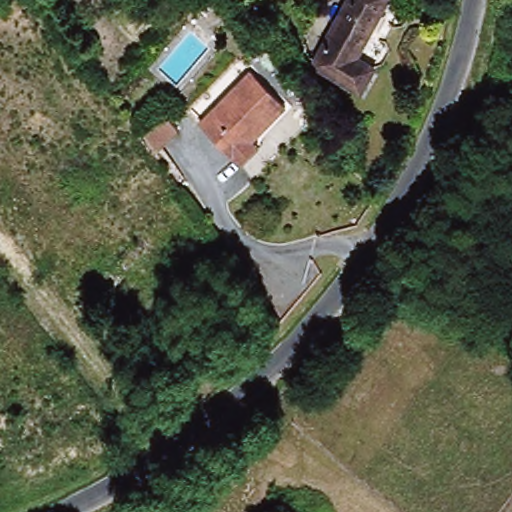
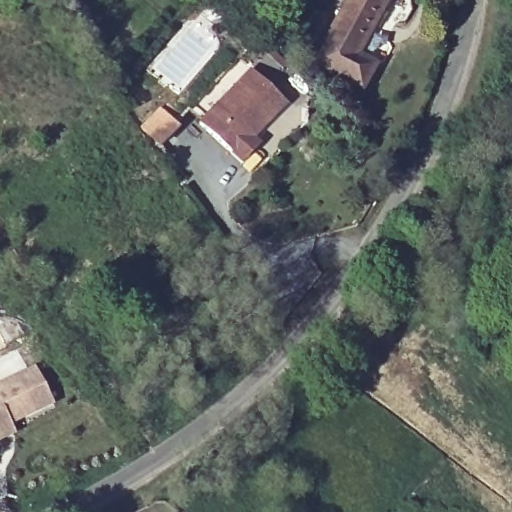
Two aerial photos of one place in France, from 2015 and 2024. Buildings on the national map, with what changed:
unchanged [(372,67),(360,90),(313,63),(347,0),(386,0),(355,57),(372,67)]
unchanged [(240,166),(230,156),(198,123),(251,72),(286,109),(263,131),(260,128),(249,138),(259,149),(240,166)]
unchanged [(176,127),(160,143),(143,125),(166,104),(179,117),(174,122),(176,127)]
new [(54,406),(11,427),(16,435),(0,443),(0,384),(35,367),(54,406)]

